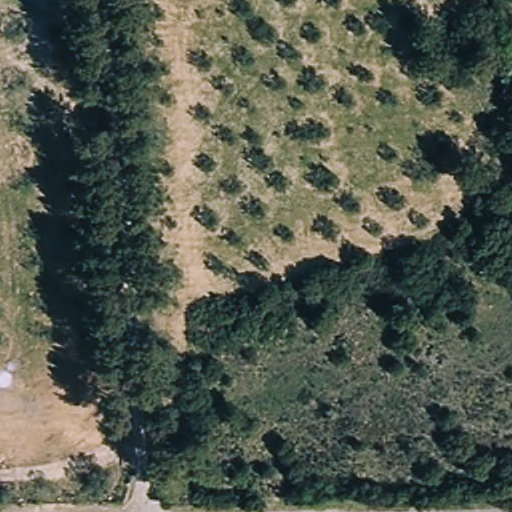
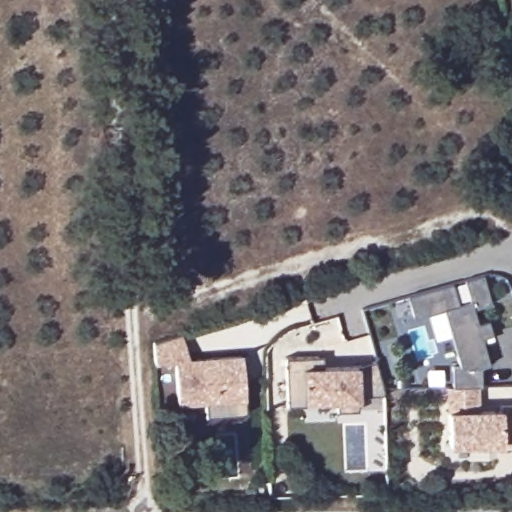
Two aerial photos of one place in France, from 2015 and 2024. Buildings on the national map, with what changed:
new [(453,285),(459,305),(471,302),(464,281),(476,277),(484,276),(491,305),(474,310),(477,323),(488,321),(492,335),(481,338),(489,365),(480,367),(482,387),(478,387),(453,388),(452,367),(459,367),(444,311),(415,320),(409,298),(453,285)]
new [(184,335),(191,361),(244,357),(248,415),(208,418),(207,402),(180,405),(177,362),(157,364),(156,343),(184,335)]
new [(313,359),(313,371),(347,370),(376,363),(384,391),(384,397),(358,398),(359,413),(337,414),(336,403),(301,405),(301,408),(282,409),(280,360),(313,359)]
new [(453,388),(478,387),(479,412),(501,411),(501,406),(512,406),(512,443),(450,445),(448,388),(453,388)]

